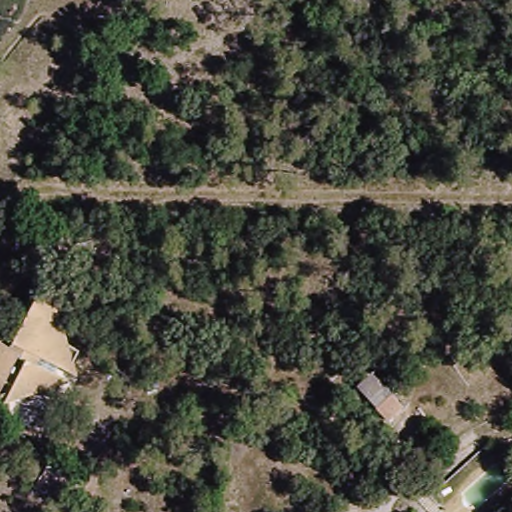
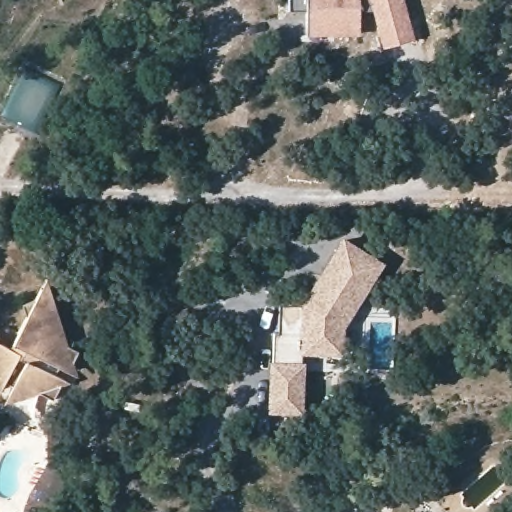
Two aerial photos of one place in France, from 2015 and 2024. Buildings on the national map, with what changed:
new [(390,37),(378,4),(367,4),(367,21),(367,31),(308,32),(307,23),(307,6),(288,6),(288,0),(415,0),(424,25),(427,35),(393,47),(390,37)]
new [(275,334),(280,334),(280,304),(303,304),(343,242),(382,264),(344,326),(343,353),(305,352),(304,366),(303,412),(273,411),(275,334)]
unchanged [(27,323),(23,308),(34,303),(46,279),(69,353),(77,353),(72,367),(77,379),(60,387),(53,402),(38,395),(0,409),(0,345),(9,350),(27,323)]
new [(375,374),(404,408),(388,423),(360,388),(375,374)]
demolished [(392,376),(422,410),(405,424),(377,389),(392,376)]
unchanged [(412,509),(414,512),(408,512),(412,509)]

